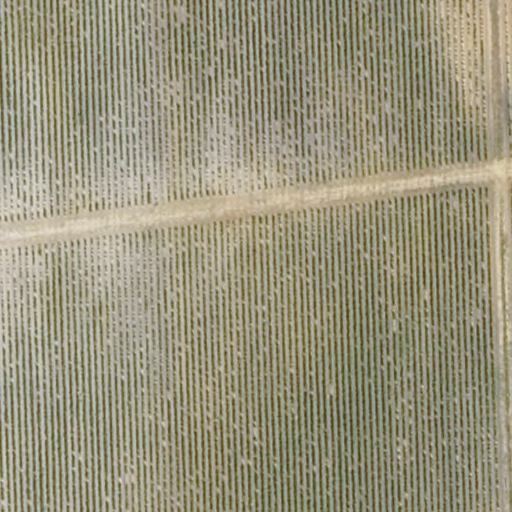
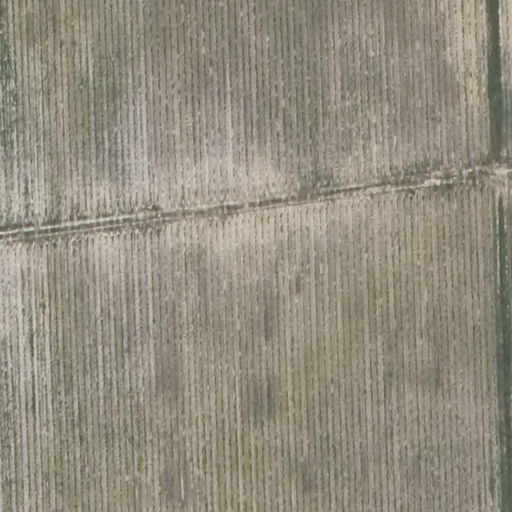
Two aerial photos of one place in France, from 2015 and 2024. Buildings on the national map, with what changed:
[]

